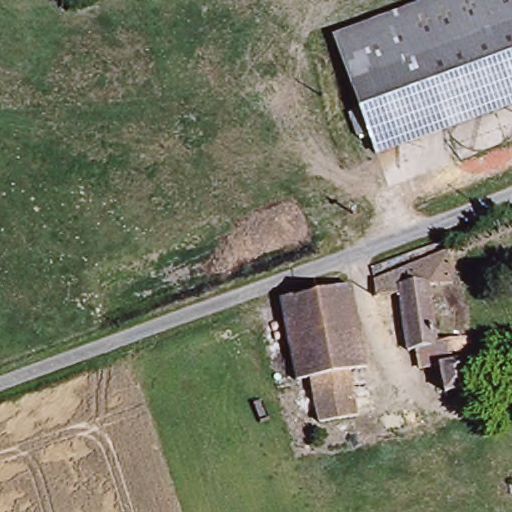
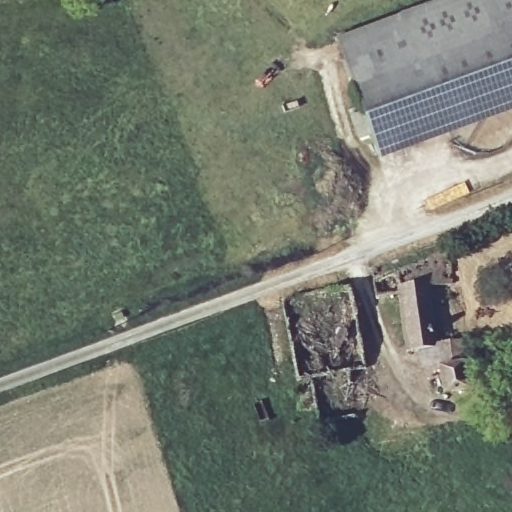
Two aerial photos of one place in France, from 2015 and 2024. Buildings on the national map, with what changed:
unchanged [(338,35),(431,0),(512,0),(512,99),(381,149),(338,35)]
unchanged [(402,310),(399,291),(377,295),(373,270),(447,249),(452,281),(427,285),(431,346),(404,348),(402,310)]
unchanged [(323,420),(316,367),(300,367),(289,291),(355,283),(359,311),(362,342),(367,387),(358,388),(361,415),(323,420)]
unchanged [(459,343),(470,403),(448,407),(443,373),(441,345),(459,343)]

